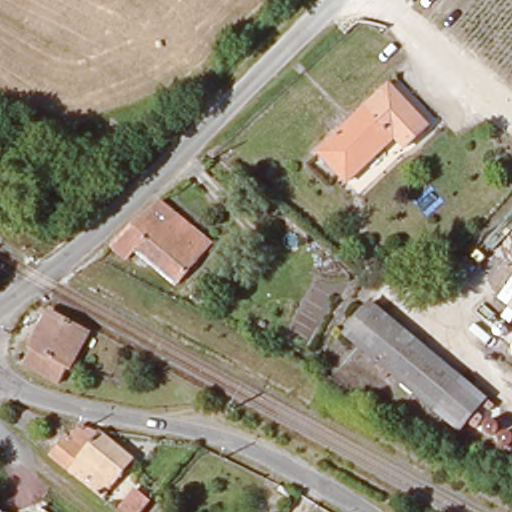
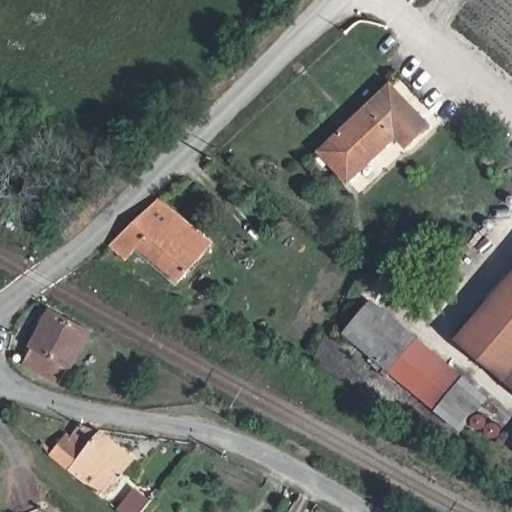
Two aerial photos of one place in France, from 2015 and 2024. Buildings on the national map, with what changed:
unchanged [(391,137),(346,180),(318,152),(388,87),(430,130),(405,154),(391,137)]
unchanged [(155,199),(209,245),(174,284),(135,252),(124,261),(106,246),(155,199)]
new [(455,340),(512,273),(512,388),(502,380),(455,340)]
unchanged [(90,328),(60,383),(21,362),(29,340),(50,306),(90,328)]
unchanged [(357,343),(385,312),(406,331),(381,362),(357,343)]
unchanged [(381,362),(406,331),(430,351),(405,381),(381,362)]
unchanged [(430,351),(477,390),(454,421),(405,381),(430,351)]
unchanged [(65,439),(81,452),(101,434),(134,460),(102,499),(50,455),(65,439)]
unchanged [(140,512),(127,512),(122,507),(135,492),(147,501),(140,512)]

